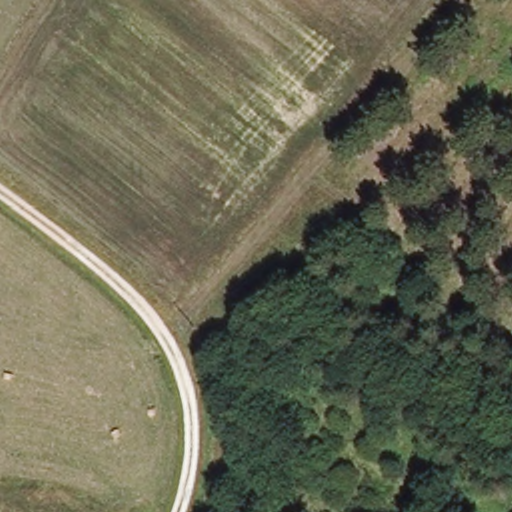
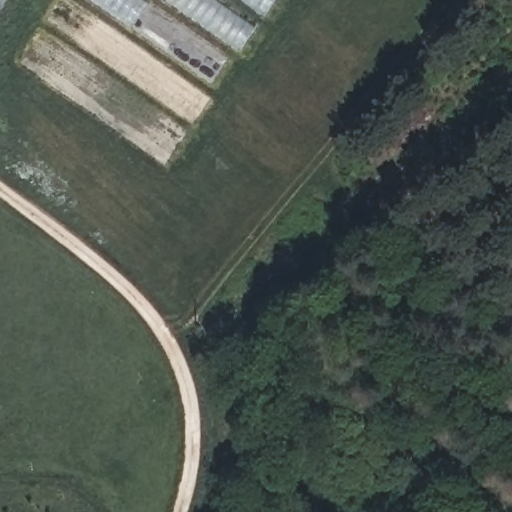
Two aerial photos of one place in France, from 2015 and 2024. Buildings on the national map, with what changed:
new [(167,0),(275,0),(240,50),(167,0)]

